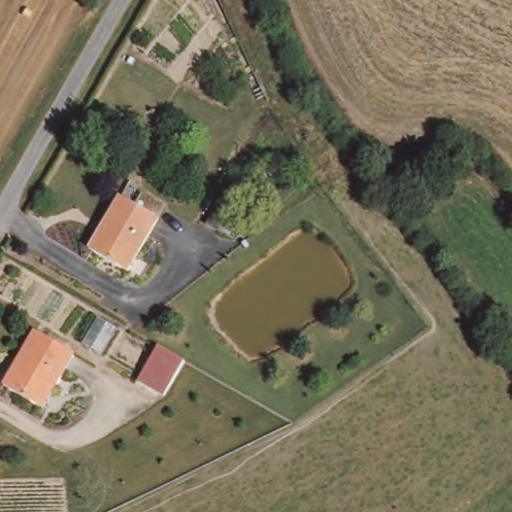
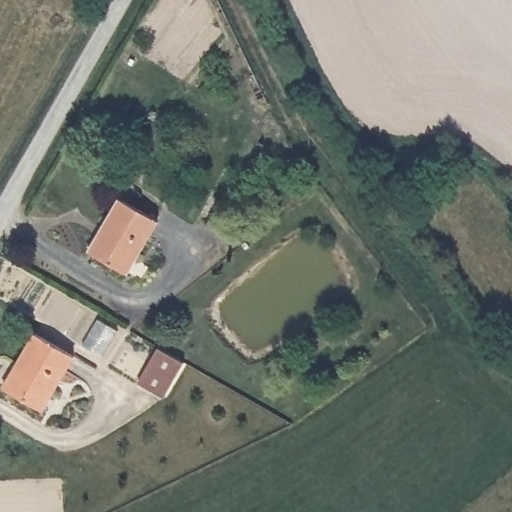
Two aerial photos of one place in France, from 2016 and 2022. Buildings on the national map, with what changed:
unchanged [(114,198),(156,220),(124,273),(83,252),(114,198)]
unchanged [(233,199),(243,205),(230,229),(219,224),(233,199)]
unchanged [(32,334),(71,356),(41,410),(1,387),(32,334)]
unchanged [(164,395),(153,388),(138,380),(158,345),(173,354),(184,360),(164,395)]

